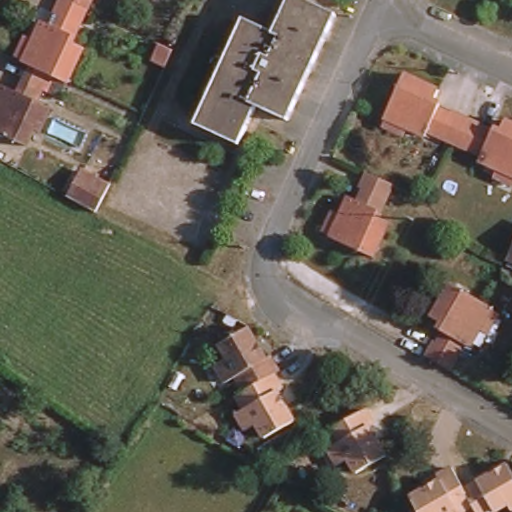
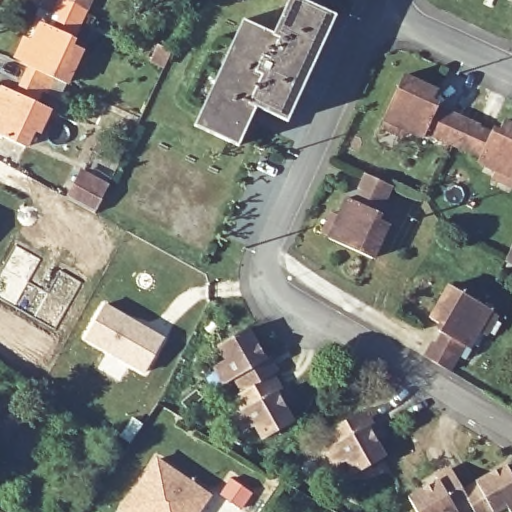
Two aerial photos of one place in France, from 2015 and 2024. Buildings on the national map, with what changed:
unchanged [(53,24),(62,3),(64,0),(95,0),(75,46),(85,50),(67,89),(53,82),(25,70),(21,68),(14,64),(24,39),(34,43),(46,21),(53,24)]
unchanged [(235,148),(190,126),(199,107),(229,45),(240,21),(271,35),(290,0),(305,0),(305,1),(333,17),(284,123),(255,108),(235,148)]
unchanged [(13,96),(25,70),(53,82),(49,90),(37,107),(51,115),(41,136),(32,131),(24,148),(0,136),(0,104),(5,92),(13,96)]
unchanged [(402,80),(435,94),(430,105),(467,123),(455,149),(417,131),(411,139),(402,134),(398,144),(376,134),(381,126),(402,80)]
unchanged [(477,169),(481,161),(455,149),(467,123),(498,138),(505,125),(512,128),(512,195),(485,183),(491,174),(477,169)]
unchanged [(65,197),(82,167),(109,182),(94,214),(90,212),(65,197)]
unchanged [(336,212),(346,192),(354,196),(365,175),(387,186),(374,213),(390,222),(371,257),(325,232),(315,229),(326,208),(336,212)]
unchanged [(505,256),(508,252),(512,245),(512,259),(505,256)]
unchanged [(466,340),(456,362),(429,347),(439,328),(424,320),(443,284),(495,310),(503,313),(492,333),(483,329),(475,344),(466,340)]
new [(87,337),(106,304),(164,338),(145,370),(87,337)]
unchanged [(225,380),(217,362),(230,355),(223,339),(251,325),(266,355),(276,351),(283,365),(274,370),(244,390),(237,376),(225,380)]
unchanged [(281,387),(277,392),(292,421),(263,438),(257,426),(249,431),(237,412),(245,409),(237,393),(244,390),(274,370),(281,387)]
unchanged [(333,467),(325,453),(339,446),(330,428),(362,412),(370,427),(364,431),(381,462),(355,476),(345,460),(333,467)]
new [(121,509),(157,456),(214,494),(201,512),(125,512),(121,509)]
unchanged [(504,503),(485,512),(475,512),(470,501),(461,487),(505,463),(511,475),(512,476),(512,512),(508,512),(504,503)]
unchanged [(455,508),(457,512),(417,512),(409,495),(450,466),(461,487),(470,501),(455,508)]

